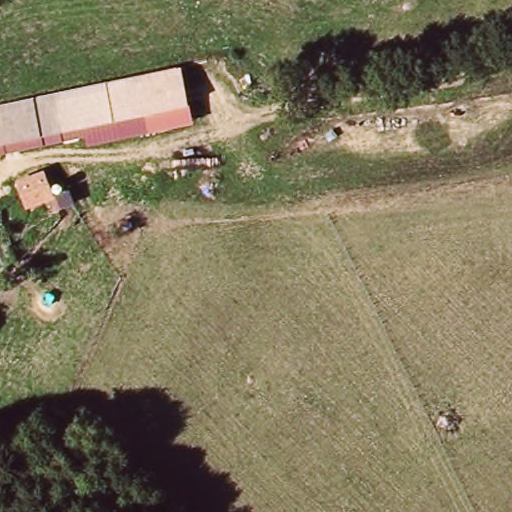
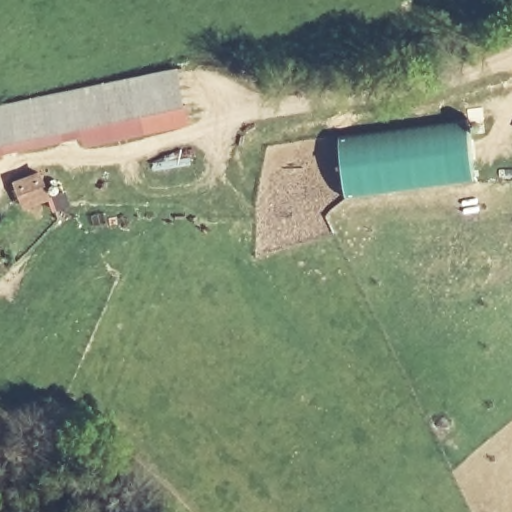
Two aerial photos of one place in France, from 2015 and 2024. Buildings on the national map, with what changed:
unchanged [(180,70),(191,124),(85,148),(83,137),(0,156),(0,105),(180,70)]
new [(340,136),(470,119),(478,178),(348,196),(340,136)]
unchanged [(13,184),(44,171),(56,201),(23,212),(13,184)]

